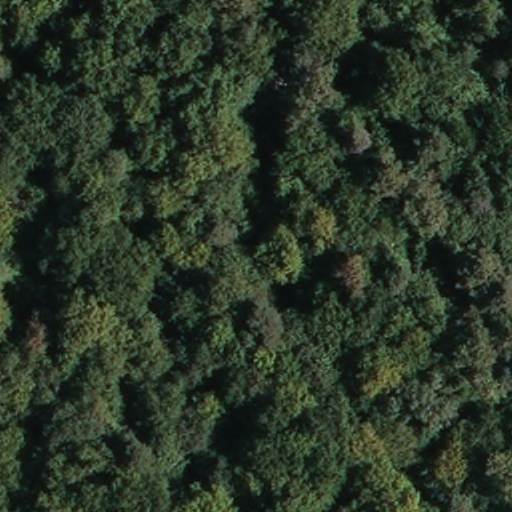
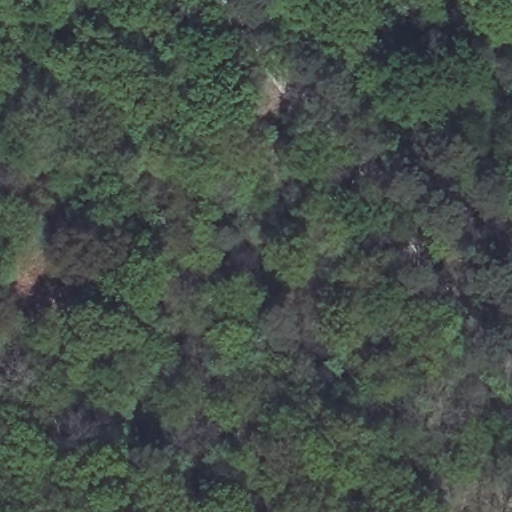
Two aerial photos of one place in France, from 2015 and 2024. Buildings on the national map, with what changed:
[]

